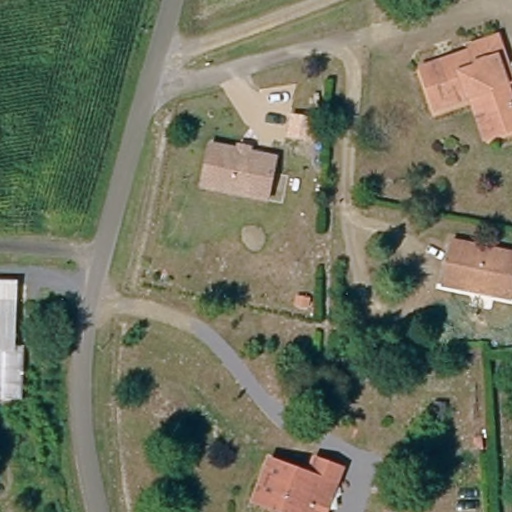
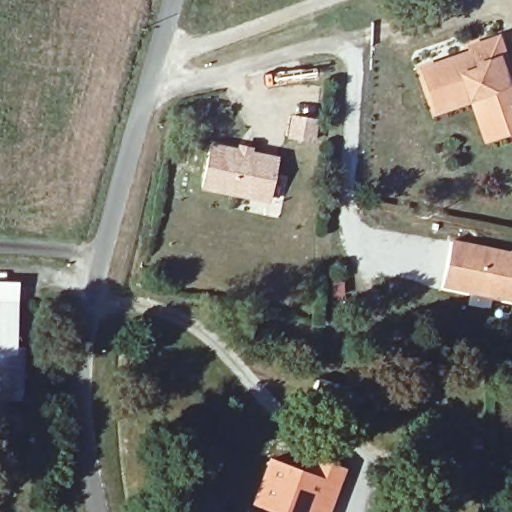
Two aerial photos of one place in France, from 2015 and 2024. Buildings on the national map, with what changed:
unchanged [(467,96),(435,106),(424,67),(472,53),(470,44),(502,35),(507,51),(512,69),(512,84),(507,85),(512,103),(512,130),(491,136),(478,139),(467,96)]
unchanged [(211,141),(236,147),(237,143),(254,146),(253,150),(278,155),(268,200),(201,187),(211,141)]
unchanged [(491,287),(489,277),(482,275),(480,284),(445,276),(455,232),(512,246),(512,292),(491,287)]
unchanged [(26,340),(26,393),(18,393),(0,393),(0,340),(0,277),(16,277),(15,296),(15,340),(19,340),(26,340)]
unchanged [(308,512),(296,512),(273,503),(271,511),(252,504),(267,460),(303,472),(309,455),(339,466),(334,481),(320,477),(308,512)]
unchanged [(308,512),(320,477),(334,481),(324,512),(308,512)]
unchanged [(273,503),(296,512),(274,512),(271,511),(273,503)]

